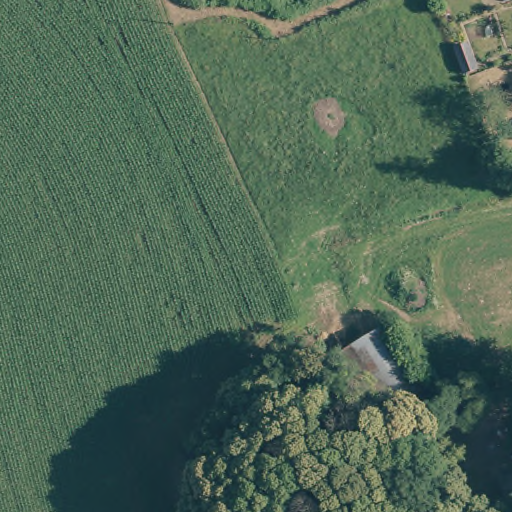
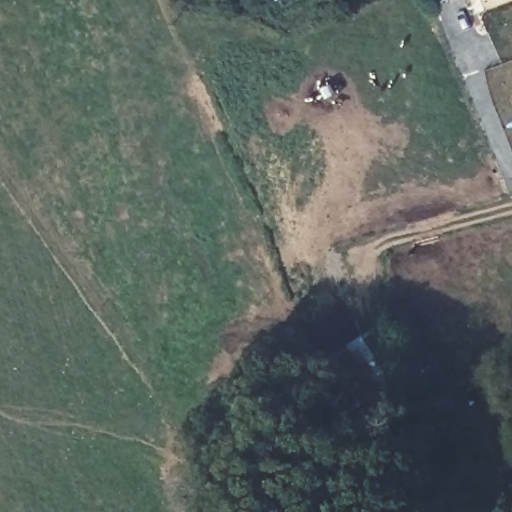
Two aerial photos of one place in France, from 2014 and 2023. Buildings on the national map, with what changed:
unchanged [(419,387),(393,404),(350,342),(381,322),(419,387)]
unchanged [(512,474),(512,512),(509,512),(501,476),(512,474)]

